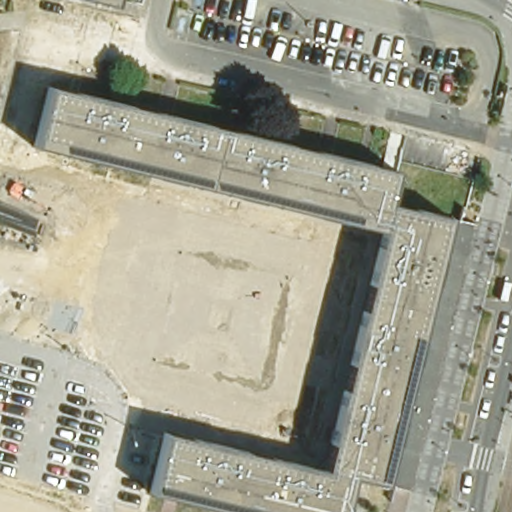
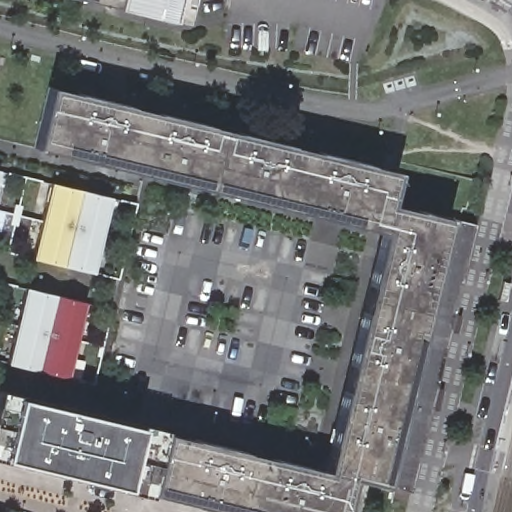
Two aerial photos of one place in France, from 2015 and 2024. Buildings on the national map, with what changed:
unchanged [(94,0),(112,0),(111,4),(94,0)]
new [(111,4),(112,0),(195,0),(190,24),(111,4)]
unchanged [(49,91),(395,170),(393,179),(46,99),(49,91)]
unchanged [(393,179),(387,202),(440,215),(378,483),(355,477),(347,512),(256,512),(155,489),(167,435),(325,471),(381,230),(36,154),(46,99),(393,179)]
new [(111,197),(94,272),(34,258),(52,184),(111,197)]
unchanged [(450,217),(457,219),(458,210),(487,216),(415,503),(390,498),(392,486),(388,485),(450,217)]
unchanged [(450,217),(388,485),(378,483),(440,215),(450,217)]
new [(87,302),(70,377),(9,363),(26,288),(87,302)]
new [(0,455),(0,395),(15,398),(0,455)]
new [(0,455),(15,398),(137,427),(122,489),(0,459),(0,455)]
new [(122,489),(137,427),(167,435),(155,489),(153,496),(122,489)]
unchanged [(153,496),(155,489),(256,512),(221,512),(153,496)]

